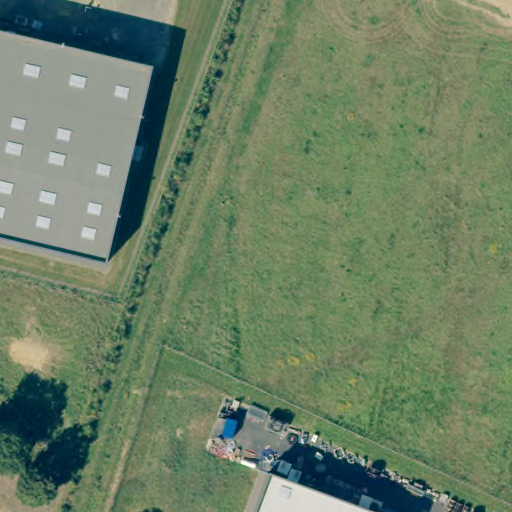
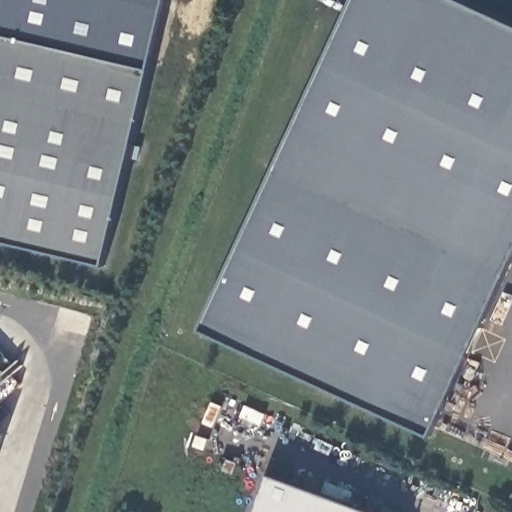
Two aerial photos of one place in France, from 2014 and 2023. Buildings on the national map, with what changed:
new [(352,0),(448,0),(512,27),(512,264),(433,438),(199,331),(352,0)]
unchanged [(146,70),(103,265),(0,240),(0,36),(146,70)]
new [(0,455),(0,433),(7,433),(0,455)]
unchanged [(267,476),(365,512),(254,512),(267,476)]

